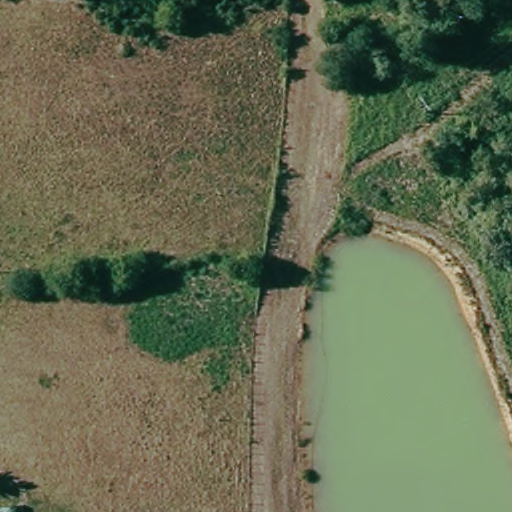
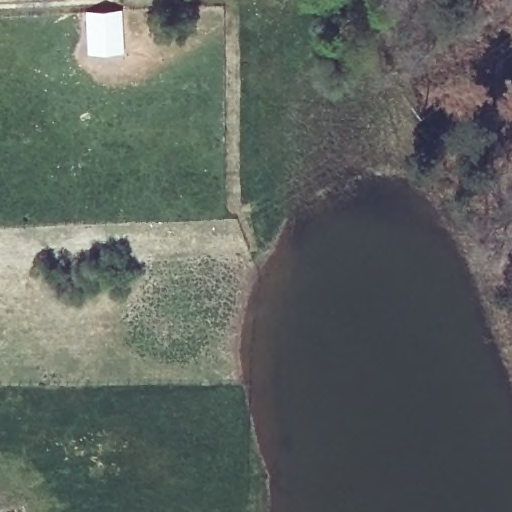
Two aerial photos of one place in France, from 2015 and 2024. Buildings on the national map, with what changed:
new [(123,7),(125,53),(85,55),(83,10),(123,7)]
unchanged [(0,512),(0,511),(21,507),(22,512),(0,512)]

